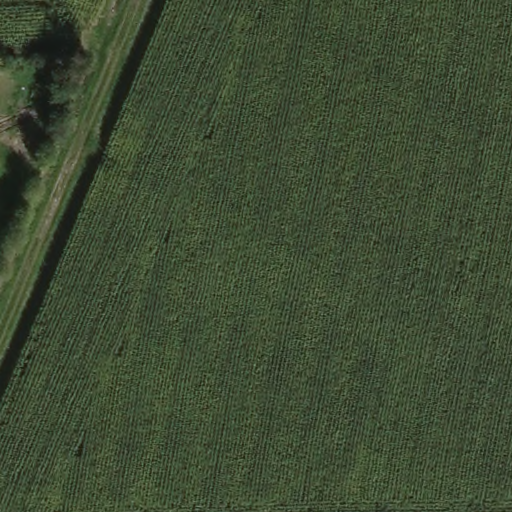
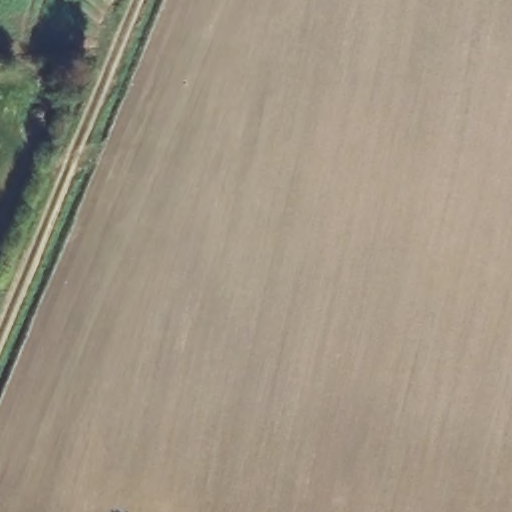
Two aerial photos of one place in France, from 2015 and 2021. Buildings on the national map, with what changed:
[]

